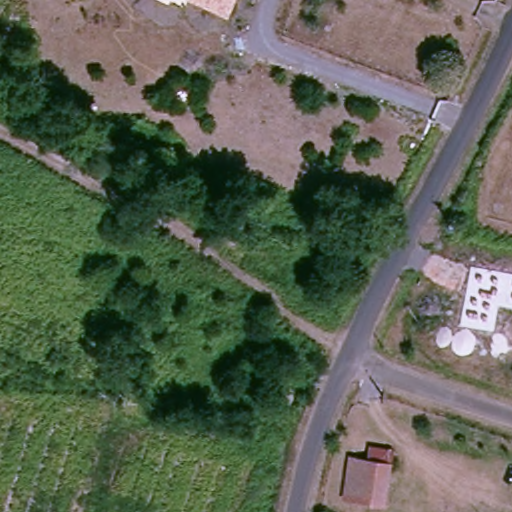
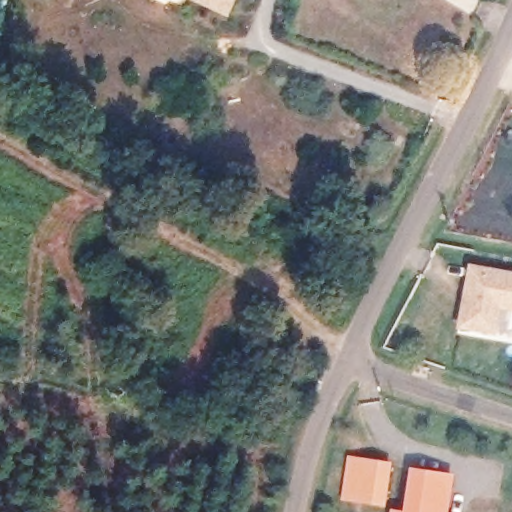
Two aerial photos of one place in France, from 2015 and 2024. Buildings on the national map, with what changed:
unchanged [(228,17),(194,0),(236,0),(228,17)]
new [(512,271),(512,310),(499,308),(495,333),(458,327),(469,263),(512,271)]
new [(341,500),(348,454),(391,462),(383,506),(341,500)]
new [(390,512),(390,510),(402,511),(409,467),(453,472),(448,512),(390,512)]

